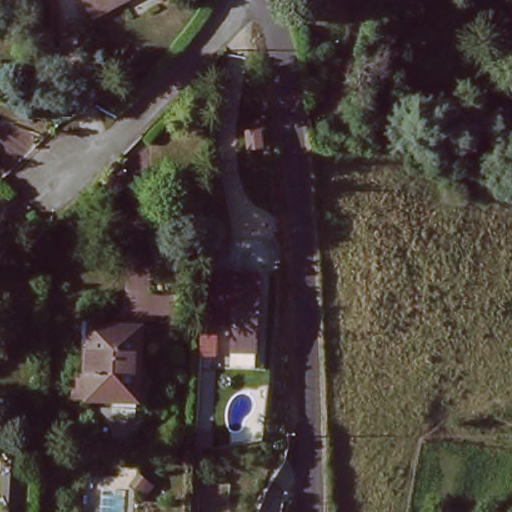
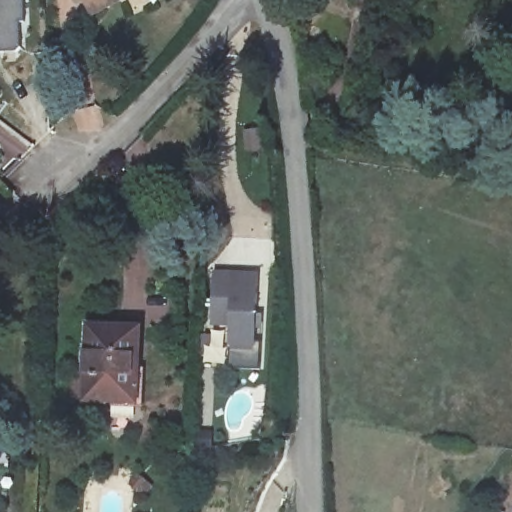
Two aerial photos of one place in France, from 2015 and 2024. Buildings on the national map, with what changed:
new [(25,23),(20,23),(21,49),(17,53),(0,54),(0,0),(23,0),(25,23)]
unchanged [(97,16),(87,0),(125,0),(97,16)]
unchanged [(251,352),(226,352),(228,317),(206,315),(207,288),(254,290),(251,352)]
unchanged [(130,401),(80,398),(82,374),(78,374),(79,349),(83,350),(85,327),(136,329),(130,401)]

